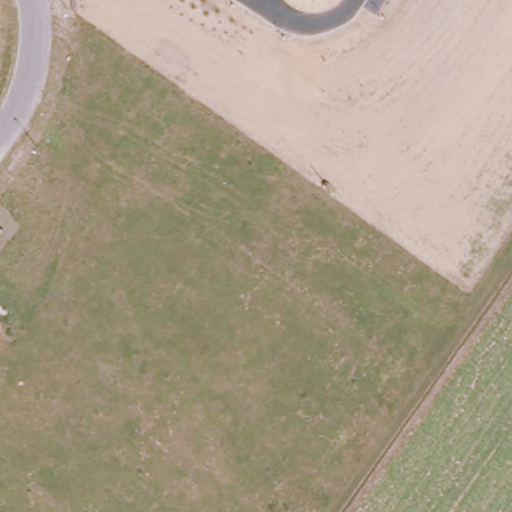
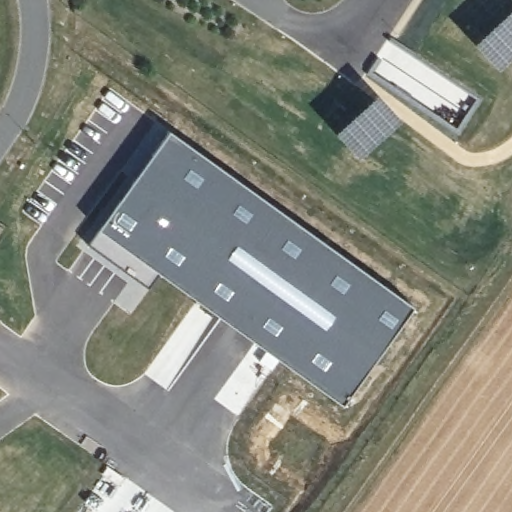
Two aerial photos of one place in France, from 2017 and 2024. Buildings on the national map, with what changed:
new [(344,405),(160,272),(149,287),(88,243),(99,229),(169,131),(415,307),(344,405)]
new [(0,230),(0,226),(2,227),(0,230)]

